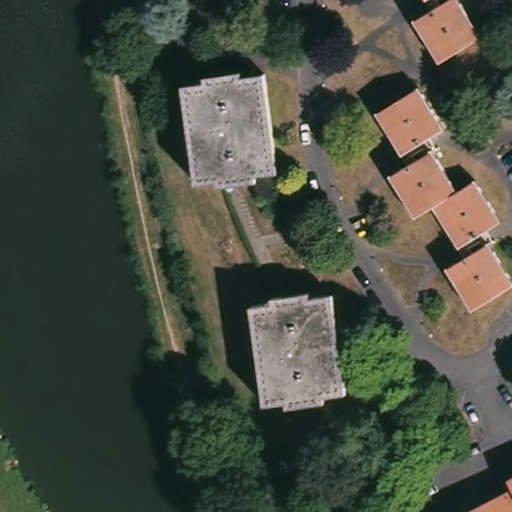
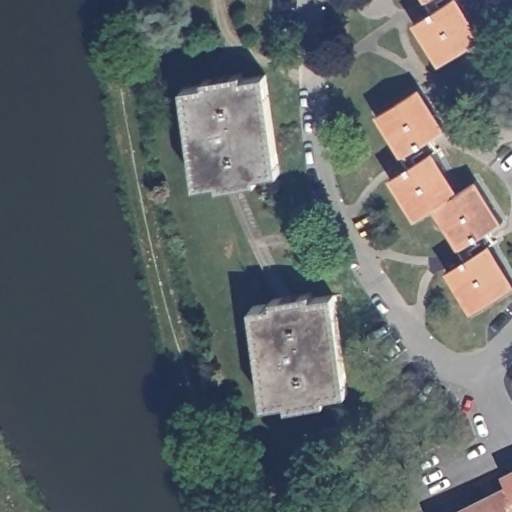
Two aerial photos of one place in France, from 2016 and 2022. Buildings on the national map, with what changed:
unchanged [(475,37),(435,62),(410,22),(427,12),(420,0),(453,0),(475,37)]
unchanged [(262,75),(277,175),(195,186),(180,86),(262,75)]
unchanged [(415,90),(440,130),(423,140),(453,191),(471,180),(495,222),(479,232),(510,283),(468,308),(443,267),(461,256),(432,207),(413,219),(388,178),(407,166),(375,115),(415,90)]
unchanged [(330,294),(344,394),(261,405),(247,305),(330,294)]

